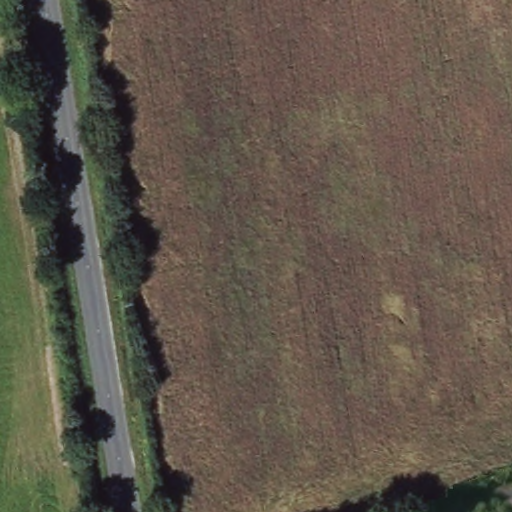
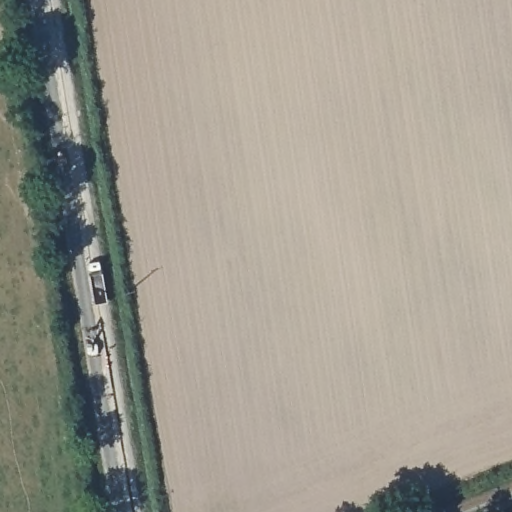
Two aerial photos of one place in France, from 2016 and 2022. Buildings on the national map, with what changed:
[]

